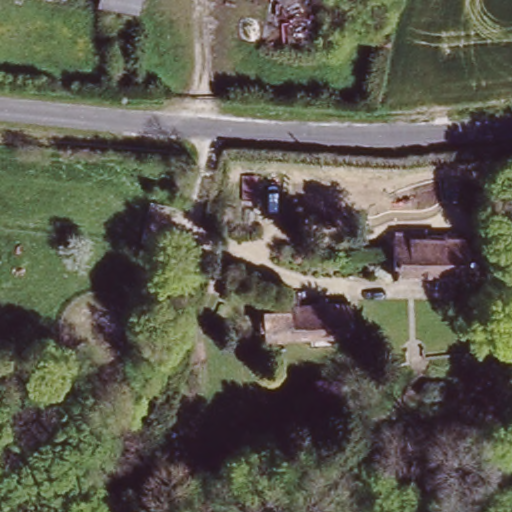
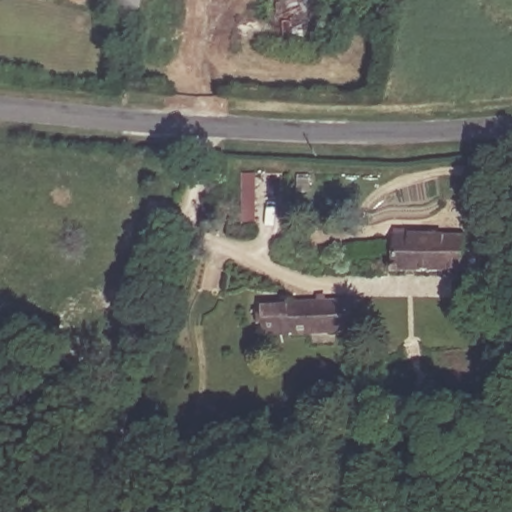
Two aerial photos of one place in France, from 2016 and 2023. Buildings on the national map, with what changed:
unchanged [(96,2),(97,0),(130,0),(128,8),(96,2)]
unchanged [(108,32),(107,43),(95,42),(97,30),(108,32)]
unchanged [(475,276),(388,272),(390,240),(475,242),(475,276)]
unchanged [(264,303),(290,303),(351,301),(352,331),(288,333),(264,334),(264,303)]

